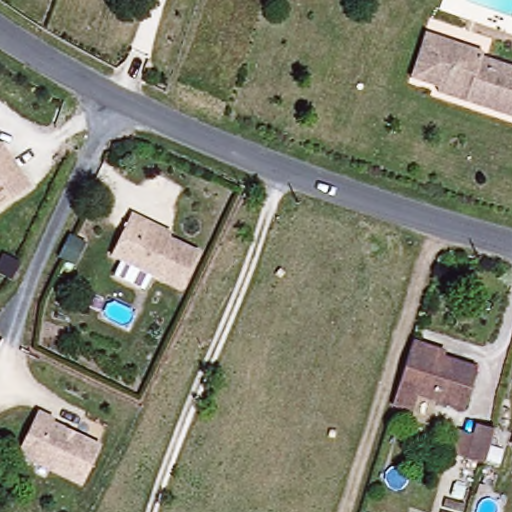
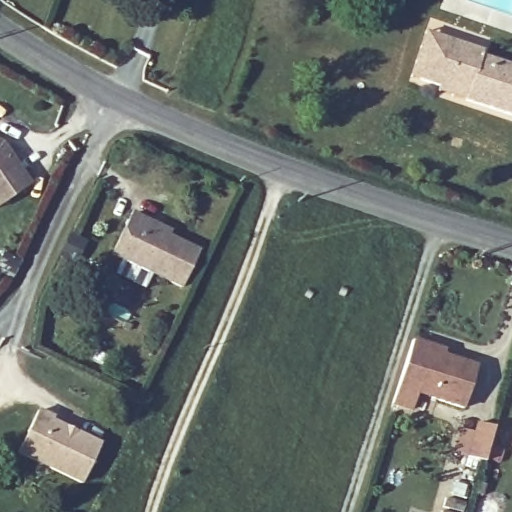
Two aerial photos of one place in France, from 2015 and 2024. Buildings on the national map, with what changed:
unchanged [(421,78),(409,74),(426,27),(436,30),(471,43),(493,51),(491,56),(512,64),(512,112),(464,97),(436,87),(437,84),(421,78)]
unchanged [(0,148),(6,157),(27,190),(0,207),(0,148)]
unchanged [(169,230),(167,234),(199,248),(184,284),(113,254),(130,213),(145,220),(169,230)]
unchanged [(79,240),(68,262),(56,257),(68,234),(79,240)]
unchanged [(407,336),(440,346),(437,358),(469,367),(460,405),(411,391),(404,410),(387,402),(404,348),(407,336)]
unchanged [(36,412),(52,419),(50,422),(99,445),(81,483),(17,453),(36,412)]
unchanged [(484,468),(464,463),(476,425),(494,430),(484,468)]

